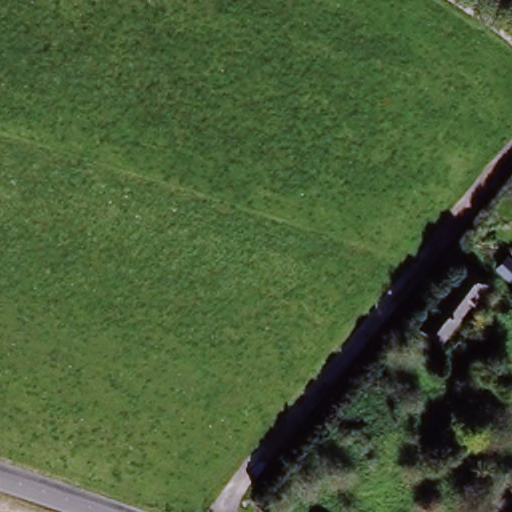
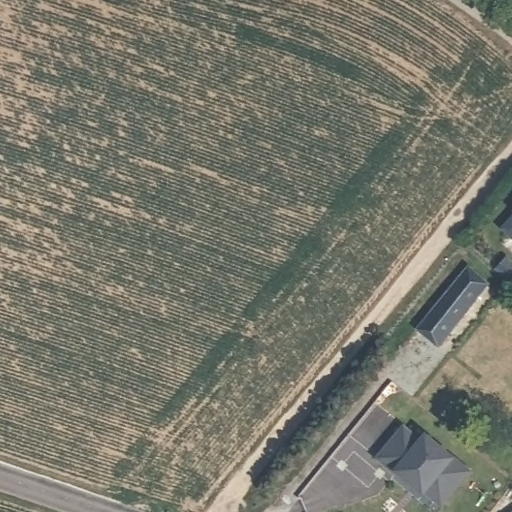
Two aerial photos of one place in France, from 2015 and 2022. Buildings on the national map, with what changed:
unchanged [(470,226),(499,252),(492,259),(510,275),(498,288),(481,272),(485,267),(455,241),(470,226)]
unchanged [(462,272),(482,289),(441,343),(420,327),(442,297),(462,272)]
new [(400,426),(417,440),(422,433),(467,469),(439,505),(422,491),(421,492),(393,471),(392,473),(374,458),(400,426)]
unchanged [(510,512),(512,511),(512,512),(510,512)]

